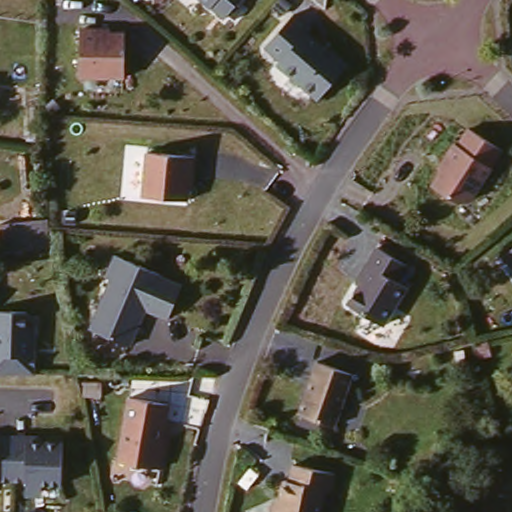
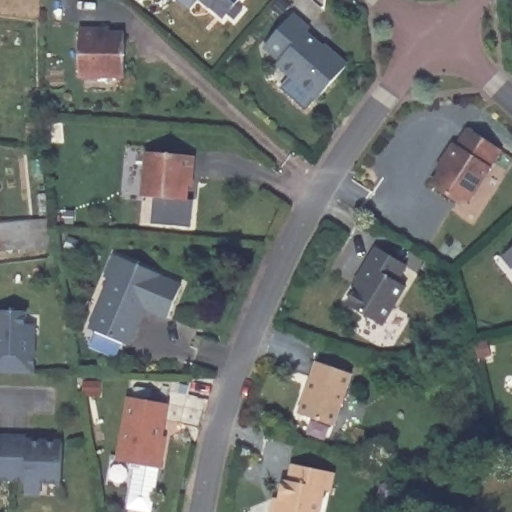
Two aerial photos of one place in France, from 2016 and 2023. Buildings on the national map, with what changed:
unchanged [(243,6),(234,16),(228,11),(223,16),(205,0),(236,0),(236,1),(243,6)]
unchanged [(289,10),(305,25),(302,29),(319,43),(321,41),(345,61),(315,96),(273,61),(276,57),(261,43),(289,10)]
unchanged [(83,28),(113,26),(113,29),(128,28),(131,71),(86,75),(83,28)]
unchanged [(0,109),(40,109),(41,143),(0,136),(0,109)]
unchanged [(449,161),(446,159),(455,143),(459,146),(469,128),(503,149),(467,208),(456,210),(429,194),(449,161)]
unchanged [(150,147),(198,151),(195,181),(192,181),(191,195),(146,192),(150,147)]
unchanged [(52,216),(55,241),(5,246),(2,221),(52,216)]
unchanged [(368,262),(365,261),(375,244),(405,263),(396,278),(404,283),(380,321),(345,299),(368,262)]
unchanged [(512,245),(512,267),(501,255),(512,245)]
unchanged [(163,269),(161,272),(185,282),(170,314),(147,304),(131,341),(91,324),(114,274),(108,272),(118,250),(163,269)]
unchanged [(42,333),(41,371),(0,370),(0,308),(33,309),(33,333),(42,333)]
unchanged [(355,368),(336,420),(301,406),(320,354),(355,368)]
unchanged [(175,402),(166,444),(170,444),(166,466),(124,458),(136,394),(175,402)]
unchanged [(29,435),(65,435),(65,477),(44,477),(44,480),(27,479),(28,476),(0,476),(0,430),(29,430),(29,435)]
unchanged [(276,503),(281,504),(287,477),(292,478),(296,462),(337,472),(333,489),(327,488),(320,512),(273,512),(276,503)]

